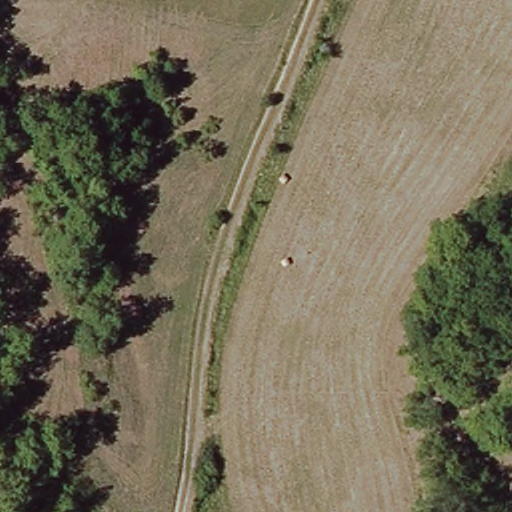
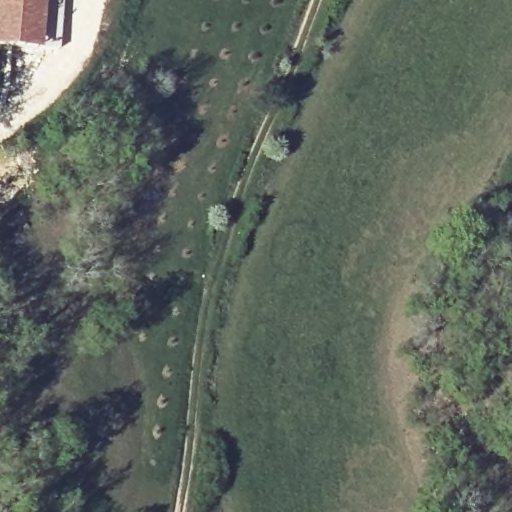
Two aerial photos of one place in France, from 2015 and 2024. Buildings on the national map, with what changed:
new [(40,51),(0,47),(0,0),(45,0),(40,51)]
new [(45,0),(62,0),(56,52),(40,51),(45,0)]

